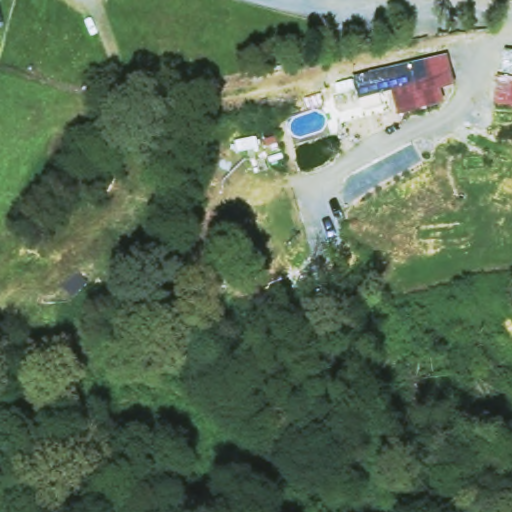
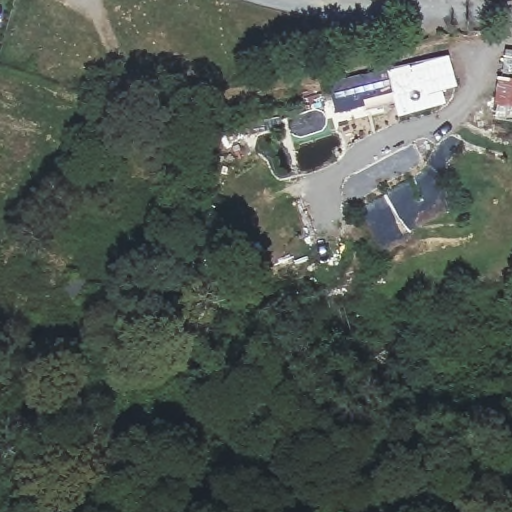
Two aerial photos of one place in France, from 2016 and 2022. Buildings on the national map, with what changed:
unchanged [(512,53),(512,108),(497,106),(500,80),(505,52),(512,53)]
unchanged [(457,88),(443,92),(447,107),(399,119),(393,93),(363,100),(356,78),(451,56),(457,88)]

